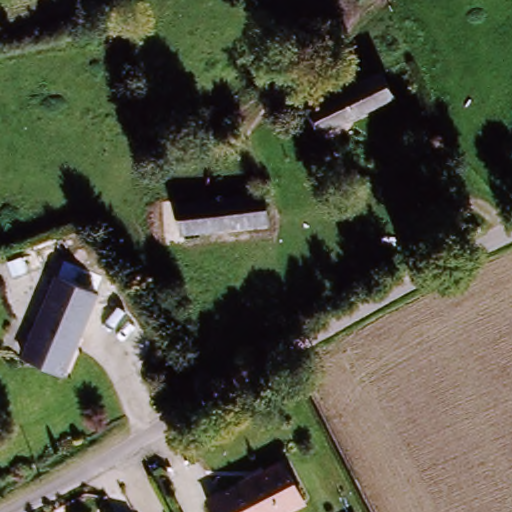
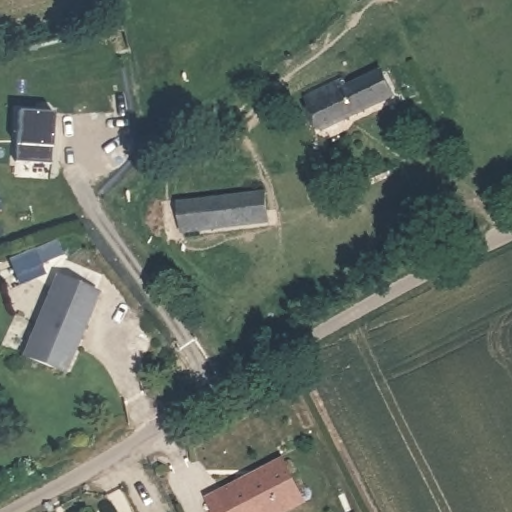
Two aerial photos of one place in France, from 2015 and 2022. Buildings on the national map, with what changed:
unchanged [(335,98),(379,82),(389,108),(317,135),(305,104),(332,94),(335,98)]
new [(18,163),(22,113),(57,116),(54,166),(18,163)]
unchanged [(181,200),(268,194),(270,226),(185,235),(181,200)]
unchanged [(62,375),(20,361),(52,274),(92,289),(62,375)]
unchanged [(256,477),(259,471),(279,462),(299,505),(284,512),(206,512),(200,498),(240,480),(242,484),(256,477)]

